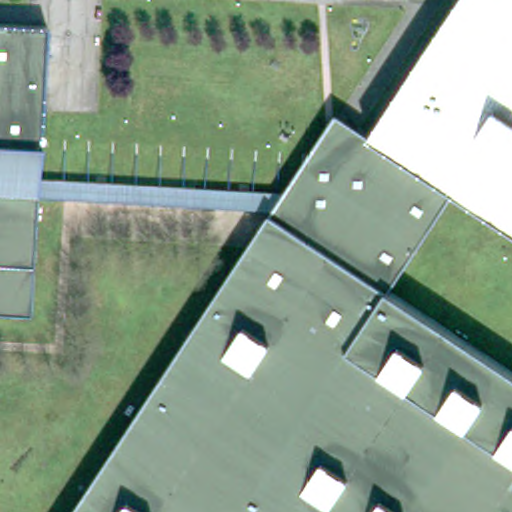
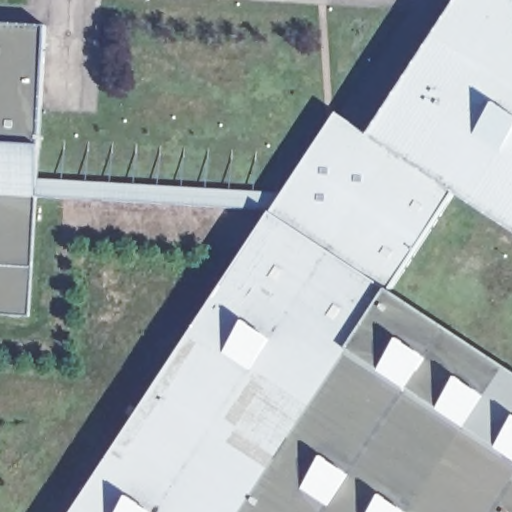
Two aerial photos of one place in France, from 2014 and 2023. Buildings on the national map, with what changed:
unchanged [(268,210),(303,233),(304,208),(36,192),(30,312),(0,310),(0,18),(45,21),(37,173),(305,189),(306,155),(320,156),(320,141),(360,144),(454,0),(512,0),(512,225),(455,188),(387,289),(512,369),(512,512),(70,512),(268,210)]

